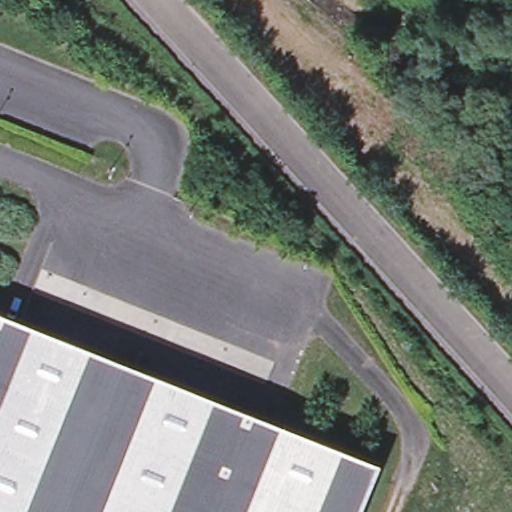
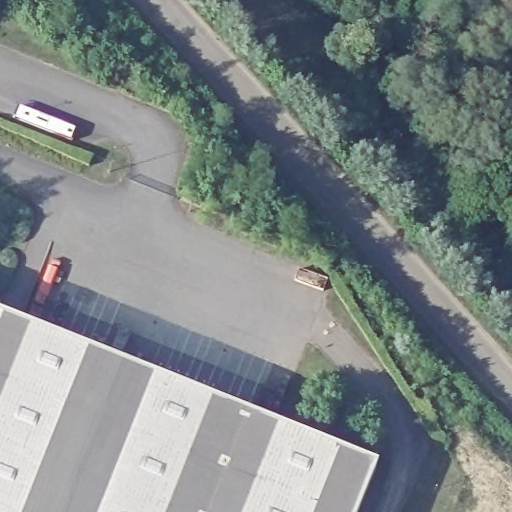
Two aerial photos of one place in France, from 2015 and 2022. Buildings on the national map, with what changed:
unchanged [(351,512),(0,512),(0,315),(370,463),(351,512)]

